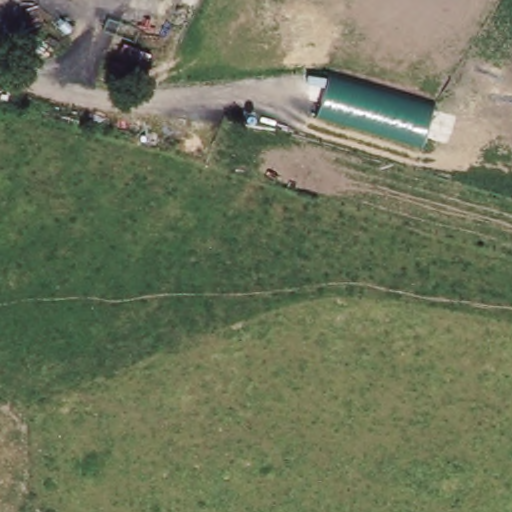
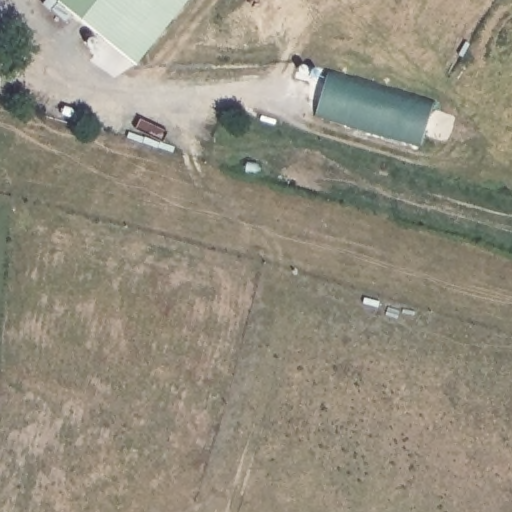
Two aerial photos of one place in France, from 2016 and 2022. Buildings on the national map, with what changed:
new [(58,0),(183,0),(134,61),(58,0)]
unchanged [(430,106),(418,148),(312,119),(325,76),(430,106)]

